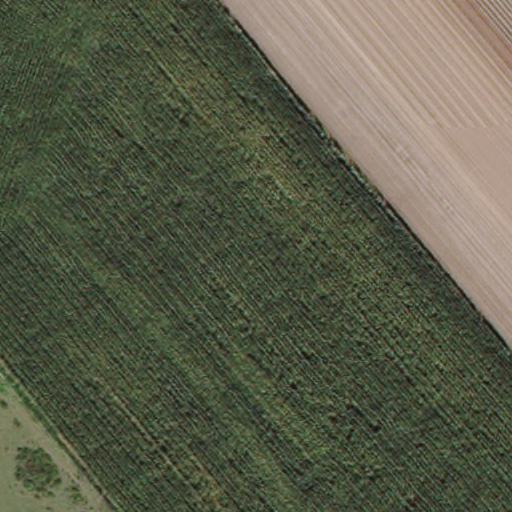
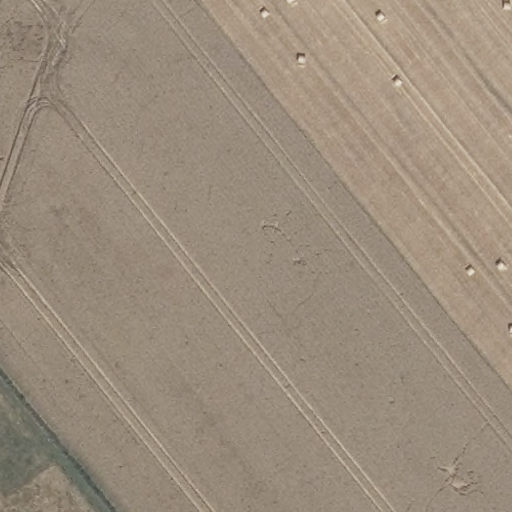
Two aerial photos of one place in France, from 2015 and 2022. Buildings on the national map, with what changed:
[]

